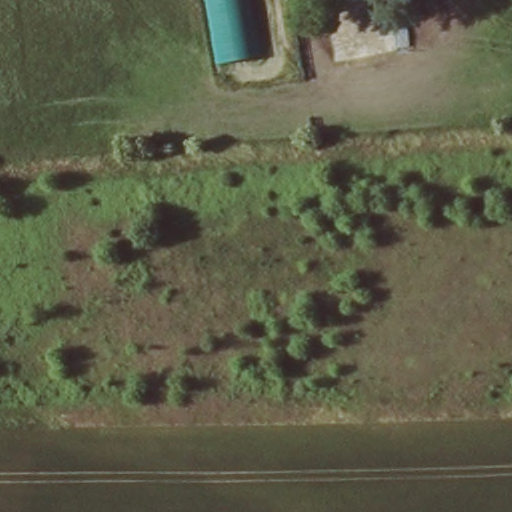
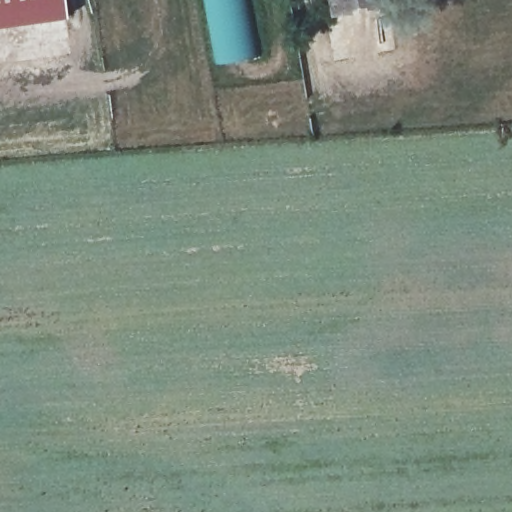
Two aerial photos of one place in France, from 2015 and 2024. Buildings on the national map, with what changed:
new [(67,18),(0,27),(0,0),(64,0),(67,18)]
unchanged [(221,64),(209,0),(253,0),(264,57),(221,64)]

